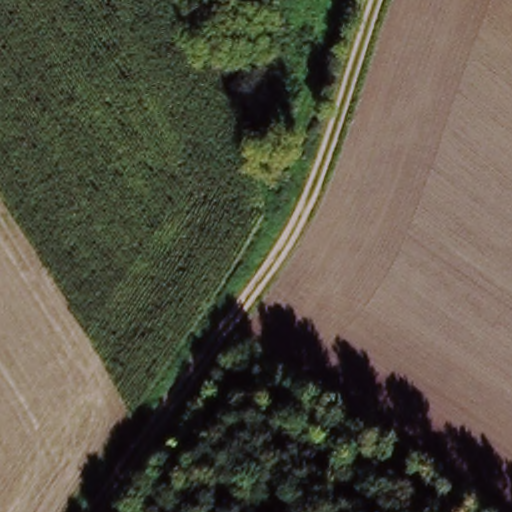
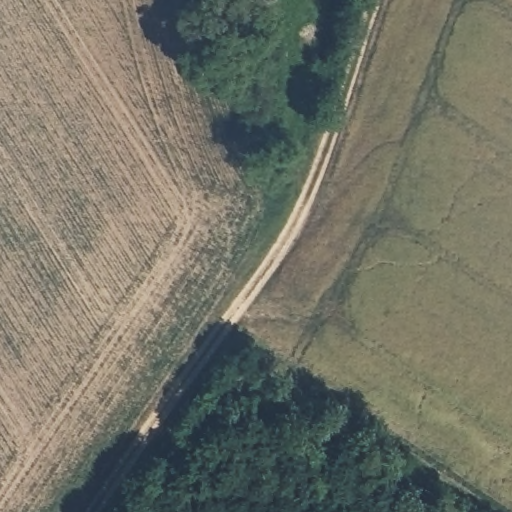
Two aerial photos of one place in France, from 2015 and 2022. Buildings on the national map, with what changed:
unchanged [(242,0),(269,0),(271,4),(246,13),(242,0)]

